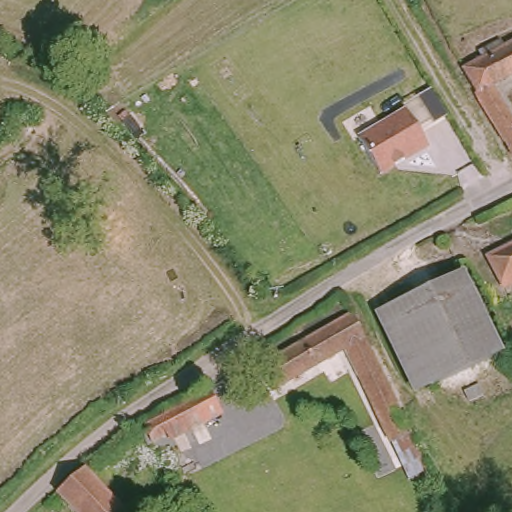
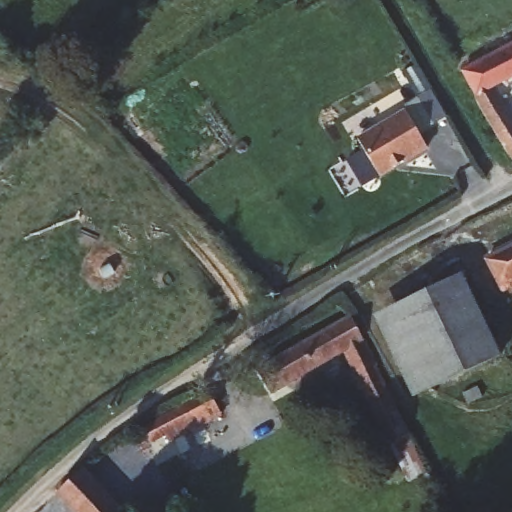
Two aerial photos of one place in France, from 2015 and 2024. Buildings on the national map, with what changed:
unchanged [(455,63),(512,34),(512,79),(497,87),(512,115),(512,168),(455,63)]
unchanged [(429,150),(380,179),(357,139),(404,110),(429,150)]
unchanged [(493,250),(512,242),(512,277),(510,279),(493,250)]
unchanged [(497,366),(413,402),(375,318),(457,282),(497,366)]
unchanged [(417,441),(392,452),(380,430),(343,357),(276,387),(262,360),(357,315),(406,419),(410,429),(417,441)]
unchanged [(155,441),(146,426),(210,385),(219,400),(155,441)]
unchanged [(95,458),(121,512),(88,512),(70,475),(95,458)]

